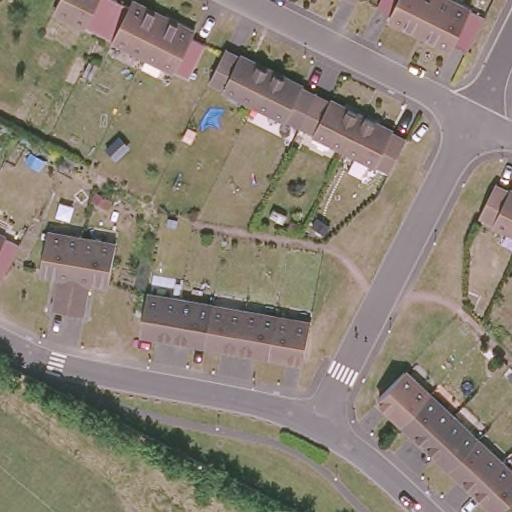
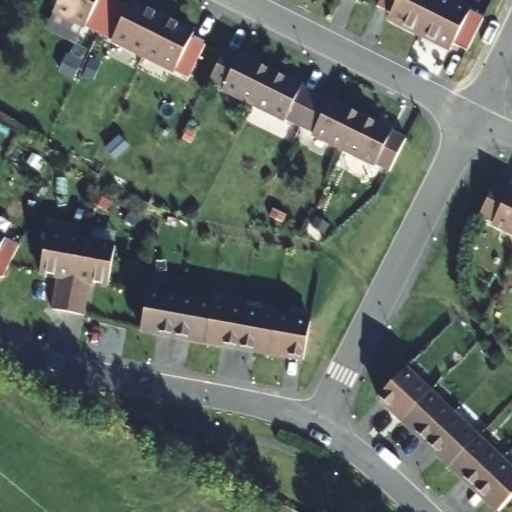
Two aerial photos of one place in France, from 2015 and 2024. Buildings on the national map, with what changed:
unchanged [(145,52),(55,7),(58,0),(123,0),(143,10),(146,5),(164,14),(181,23),(179,28),(206,41),(190,74),(145,52)]
unchanged [(357,0),(359,0),(359,1),(357,0)]
unchanged [(478,53),(451,39),(449,44),(413,26),(415,22),(388,8),(392,0),(455,0),(494,19),(478,53)]
unchanged [(300,124),(210,79),(226,48),(239,55),(241,52),(303,84),(301,86),(316,93),(300,124)]
unchanged [(300,124),(316,93),(329,100),(331,98),(393,129),(392,131),(405,139),(390,169),(300,124)]
unchanged [(496,183),(509,189),(511,187),(512,188),(512,229),(481,214),(496,183)]
unchanged [(56,289),(59,273),(41,269),(48,230),(115,244),(109,282),(91,279),(86,304),(84,312),(53,306),(56,289)]
unchanged [(24,252),(13,275),(8,285),(0,281),(0,240),(24,252)]
unchanged [(304,357),(141,327),(148,289),(311,319),(304,357)]
unchanged [(512,468),(512,496),(508,501),(499,509),(483,493),(380,396),(379,394),(406,367),(407,368),(512,468)]

